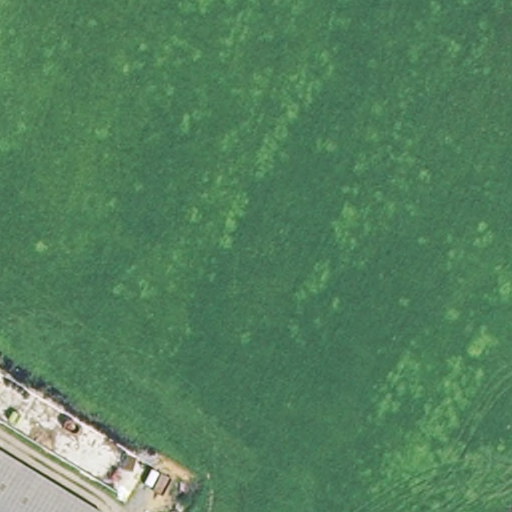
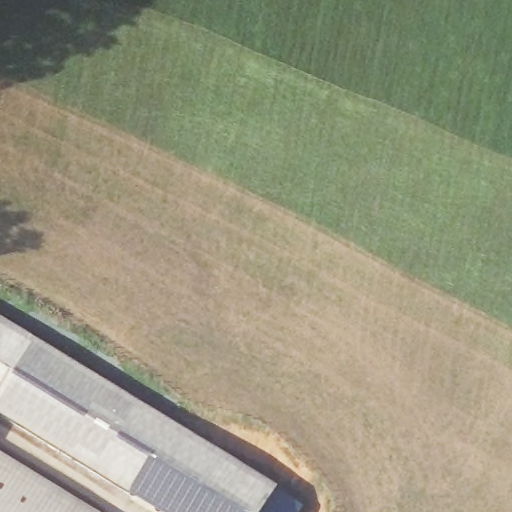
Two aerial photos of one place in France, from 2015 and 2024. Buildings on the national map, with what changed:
new [(197,512),(160,512),(0,413),(0,318),(230,459),(197,512)]
new [(96,512),(0,512),(0,453),(96,512)]
demolished [(0,512),(0,453),(98,512),(0,512)]
new [(299,512),(197,512),(230,459),(302,506),(299,512)]

